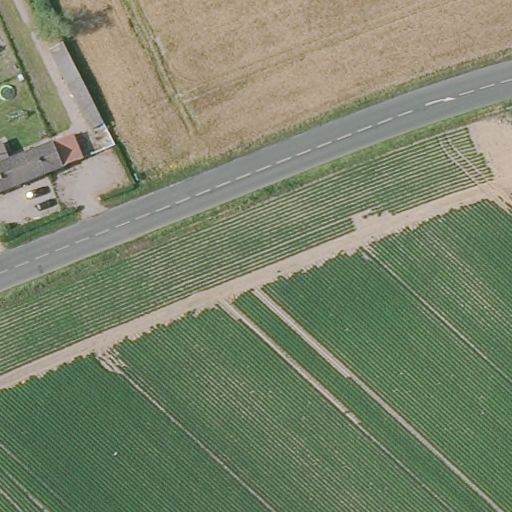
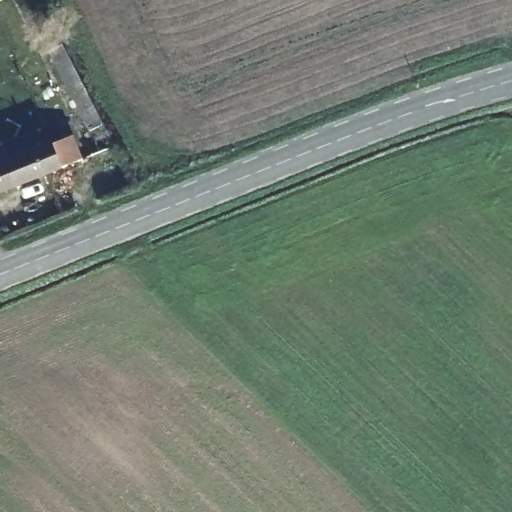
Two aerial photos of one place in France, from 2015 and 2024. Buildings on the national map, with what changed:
unchanged [(92,102),(94,105),(76,113),(52,66),(69,58),(92,102)]
unchanged [(0,181),(0,157),(69,130),(76,151),(0,181)]

